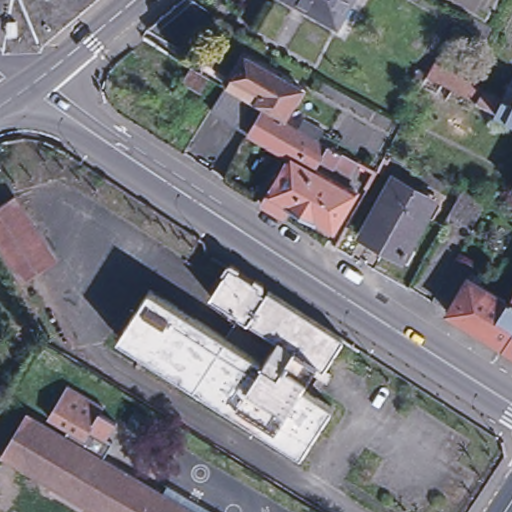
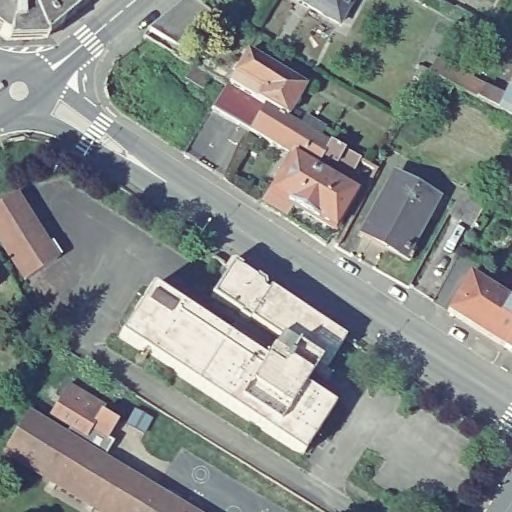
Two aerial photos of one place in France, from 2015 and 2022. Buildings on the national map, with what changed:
unchanged [(44,38),(6,39),(0,34),(0,0),(91,0),(44,38)]
unchanged [(178,46),(146,29),(180,0),(198,0),(216,11),(213,14),(178,46)]
unchanged [(339,22),(298,0),(351,0),(339,22)]
unchanged [(304,85),(285,118),(264,105),(228,85),(246,53),(304,85)]
unchanged [(504,110),(459,87),(453,97),(427,83),(428,82),(418,77),(424,65),(434,70),(439,61),(466,74),(508,95),(512,87),(512,114),(504,110)]
unchanged [(209,75),(200,89),(185,80),(193,66),(209,75)]
unchanged [(226,84),(228,85),(264,105),(249,130),(211,108),(226,84)]
unchanged [(366,187),(346,176),(349,171),(321,156),(316,166),(291,151),(290,154),(281,149),(249,130),(264,105),(285,118),(299,126),(304,117),(324,128),(319,136),(329,142),(376,169),(366,187)]
unchanged [(291,151),(316,166),(356,191),(333,230),(291,205),(284,216),(262,203),(263,202),(290,154),(291,151)]
unchanged [(389,243),(386,247),(363,234),(395,177),(431,198),(443,204),(434,219),(428,215),(407,253),(389,243)]
unchanged [(489,200),(474,225),(451,212),(464,188),(489,200)]
unchanged [(56,259),(23,282),(4,254),(0,247),(0,204),(13,195),(56,259)]
unchanged [(327,380),(311,370),(301,386),(264,363),(225,338),(235,322),(210,306),(214,298),(209,295),(225,271),(228,265),(258,284),(261,291),(265,293),(268,290),(344,338),(340,343),(324,368),(332,373),(327,380)]
unchanged [(512,307),(512,344),(474,320),(453,306),(466,280),(489,294),(489,293),(512,307)]
unchanged [(149,289),(225,338),(264,363),(301,386),(332,406),(301,455),(118,337),(149,289)]
unchanged [(68,429),(48,417),(68,385),(103,407),(99,413),(115,423),(105,438),(113,442),(103,459),(63,436),(68,429)]
unchanged [(63,436),(103,459),(191,512),(102,512),(3,453),(26,414),(63,436)]

